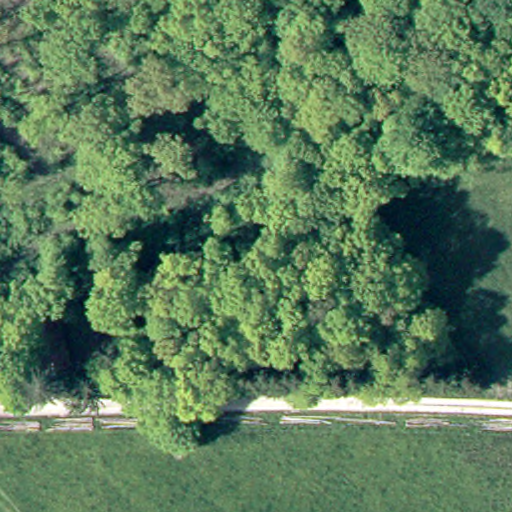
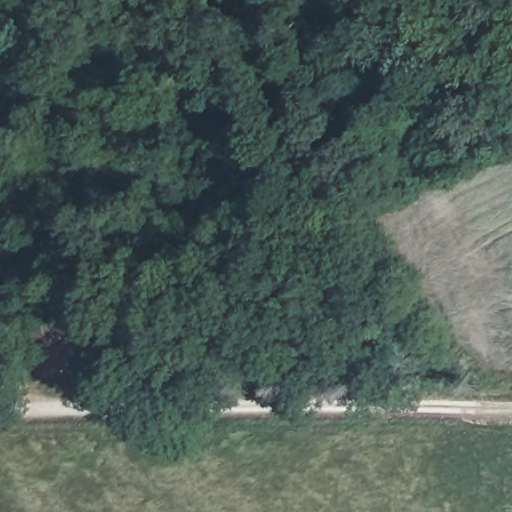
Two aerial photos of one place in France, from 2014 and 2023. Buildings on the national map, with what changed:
unchanged [(65,328),(75,356),(54,364),(44,335),(65,328)]

